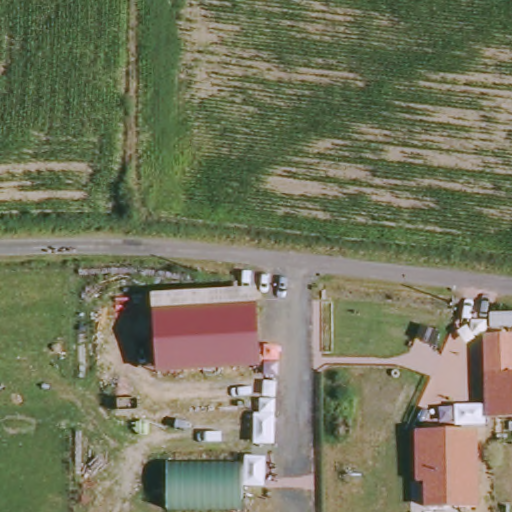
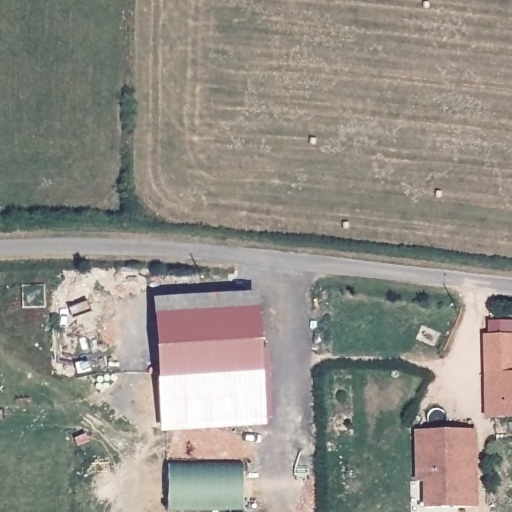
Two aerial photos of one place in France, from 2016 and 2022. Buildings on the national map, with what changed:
unchanged [(261,367),(157,374),(151,295),(256,290),(261,367)]
unchanged [(488,374),(484,375),(483,337),(512,335),(512,374),(488,374)]
new [(261,367),(264,408),(165,413),(157,374),(261,367)]
unchanged [(512,374),(512,416),(489,416),(488,374),(512,374)]
unchanged [(477,431),(479,506),(461,507),(429,507),(428,481),(421,481),(420,432),(477,431)]
unchanged [(242,505),(164,504),(164,459),(238,463),(242,505)]

